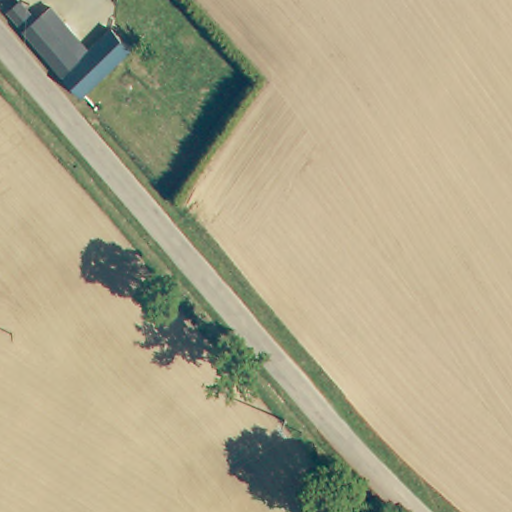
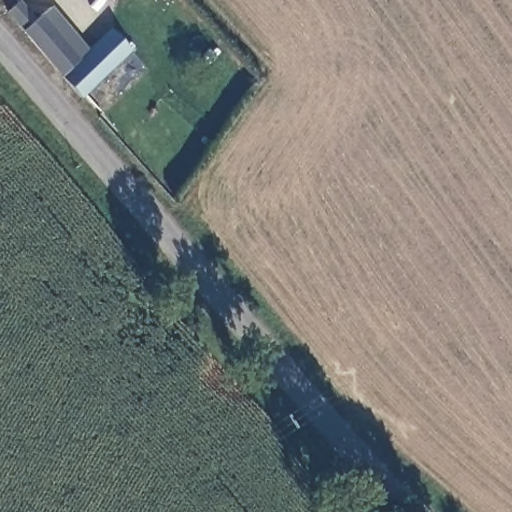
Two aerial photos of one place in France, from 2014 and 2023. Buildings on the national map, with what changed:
unchanged [(73,75),(13,11),(24,0),(25,0),(41,17),(53,5),(94,51),(118,28),(136,47),(87,97),(70,77),(73,75)]

